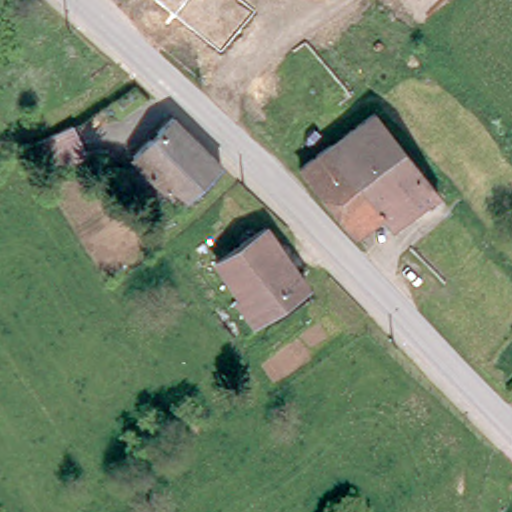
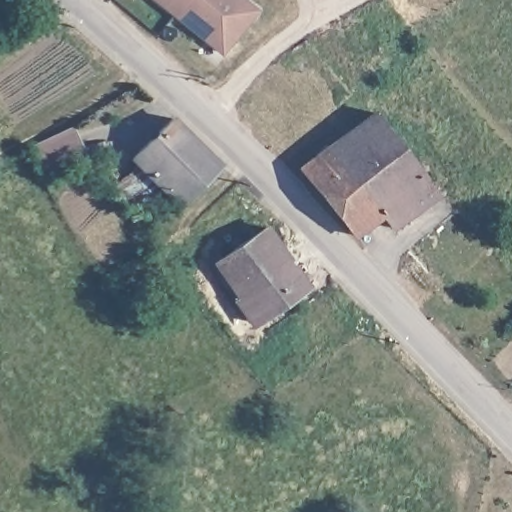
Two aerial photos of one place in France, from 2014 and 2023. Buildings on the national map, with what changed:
new [(220,54),(153,0),(244,0),(256,10),(220,54)]
demolished [(222,17),(255,56),(223,82),(190,45),(222,17)]
unchanged [(330,200),(299,167),(374,114),(436,194),(394,226),(392,227),(379,214),(352,235),(325,204),(330,200)]
unchanged [(220,166),(180,206),(132,158),(172,117),(220,166)]
unchanged [(88,156),(49,176),(35,147),(73,127),(88,156)]
unchanged [(315,287),(261,326),(245,304),(250,300),(224,261),(274,226),(315,287)]

